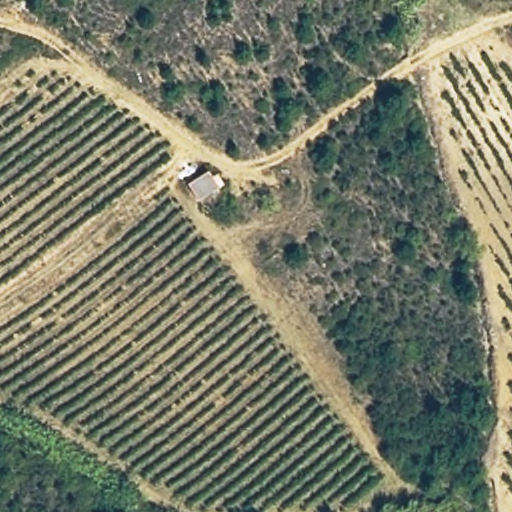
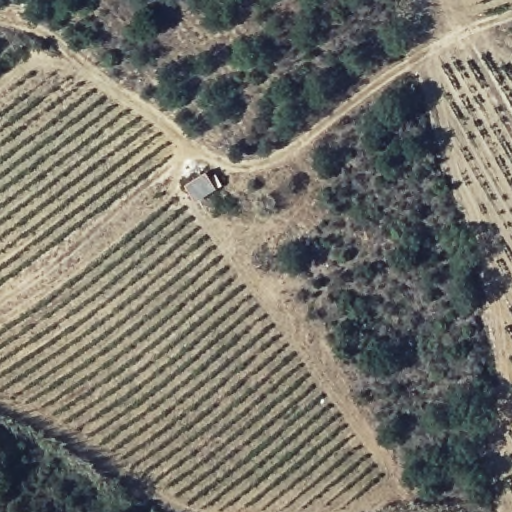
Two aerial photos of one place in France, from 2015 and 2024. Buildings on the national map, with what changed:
unchanged [(212,167),(229,188),(203,204),(188,183),(212,167)]

